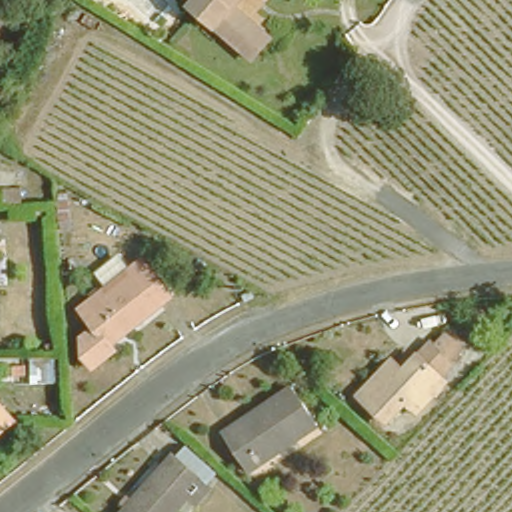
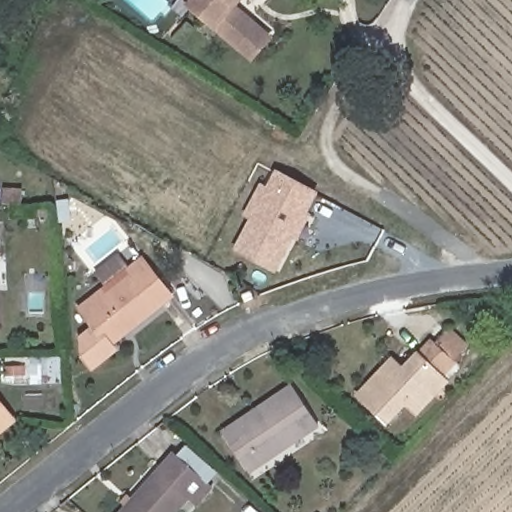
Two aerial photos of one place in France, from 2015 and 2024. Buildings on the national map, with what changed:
unchanged [(245,57),(181,4),(185,0),(231,0),(226,5),(263,37),(245,57)]
new [(249,220),(243,217),(261,184),(268,187),(276,169),(319,192),(308,213),(312,215),(299,241),(294,239),(276,273),(233,251),(249,220)]
unchanged [(108,346),(86,363),(77,352),(78,333),(91,322),(76,302),(98,285),(103,291),(129,271),(125,264),(138,254),(167,291),(153,302),(154,304),(124,326),(105,341),(108,346)]
unchanged [(450,355),(434,371),(440,376),(408,407),(398,397),(380,416),(351,388),(379,360),(387,352),(397,362),(426,332),(450,355)]
unchanged [(26,411),(23,352),(58,352),(61,407),(26,411)]
unchanged [(313,424),(244,470),(223,438),(220,432),(251,411),(288,387),(313,424)]
unchanged [(8,421),(0,427),(0,411),(8,421)]
unchanged [(208,482),(195,498),(185,490),(165,512),(114,512),(170,448),(208,482)]

